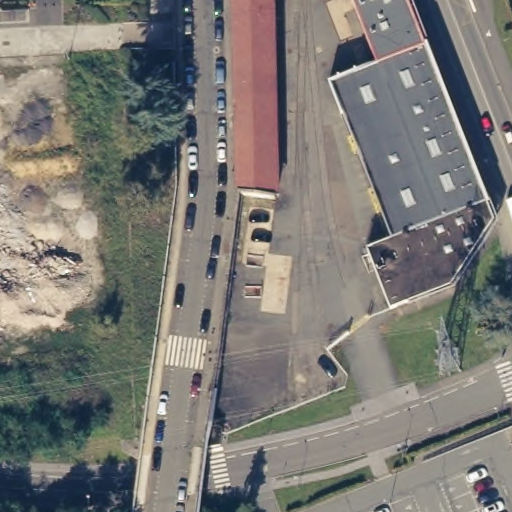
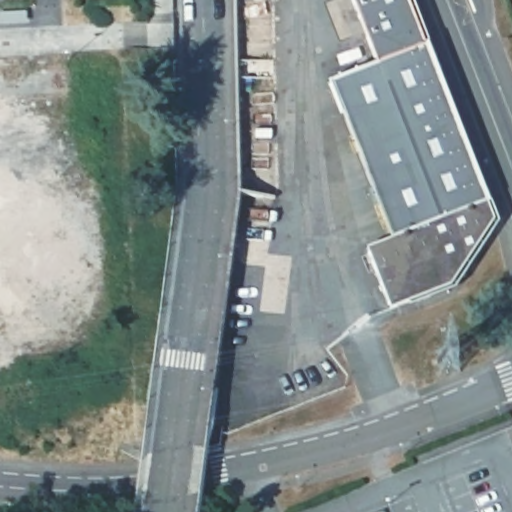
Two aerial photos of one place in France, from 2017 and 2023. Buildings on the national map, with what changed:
unchanged [(431,50),(382,68),(358,0),(410,0),(431,50)]
unchanged [(382,68),(431,50),(495,214),(456,288),(400,310),(378,251),(392,241),(341,87),(382,68)]
unchanged [(248,191),(244,191),(243,187),(248,191)]

